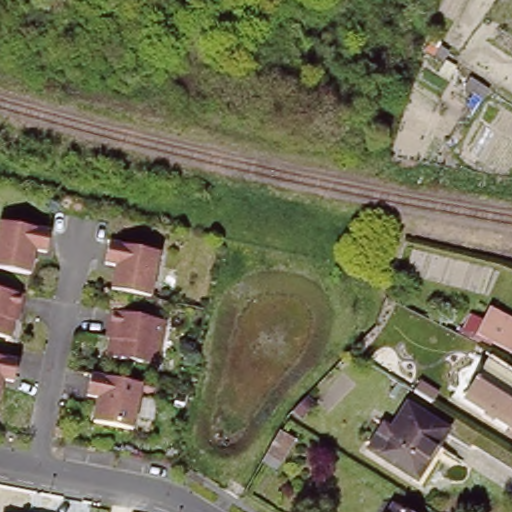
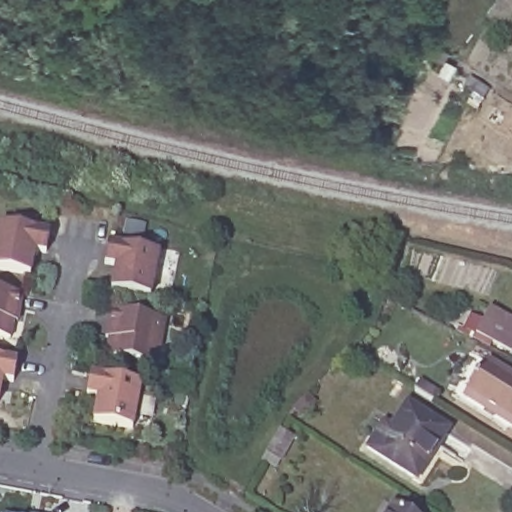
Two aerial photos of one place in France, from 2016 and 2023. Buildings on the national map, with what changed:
unchanged [(53,228),(49,248),(38,245),(33,270),(0,264),(0,234),(3,218),(53,228)]
unchanged [(153,294),(115,286),(120,262),(108,259),(113,239),(163,250),(153,294)]
unchanged [(13,334),(0,331),(0,285),(25,290),(23,305),(20,318),(17,317),(13,334)]
unchanged [(493,303),(512,312),(512,346),(494,338),(492,343),(477,335),(479,330),(493,303)]
unchanged [(109,353),(113,335),(109,335),(111,324),(114,308),(168,319),(159,363),(109,353)]
unchanged [(16,377),(5,374),(0,399),(0,353),(20,357),(16,377)]
unchanged [(483,363),(512,380),(512,429),(462,399),(483,363)]
unchanged [(136,426),(96,418),(101,394),(90,392),(93,372),(144,382),(136,426)]
unchanged [(402,387),(408,375),(426,386),(419,397),(402,387)]
unchanged [(185,406),(176,404),(178,394),(187,396),(185,406)]
unchanged [(423,482),(385,459),(374,452),(389,428),(398,433),(413,408),(454,434),(444,451),(442,450),(423,482)]
unchanged [(402,512),(387,512),(392,506),(402,512)]

